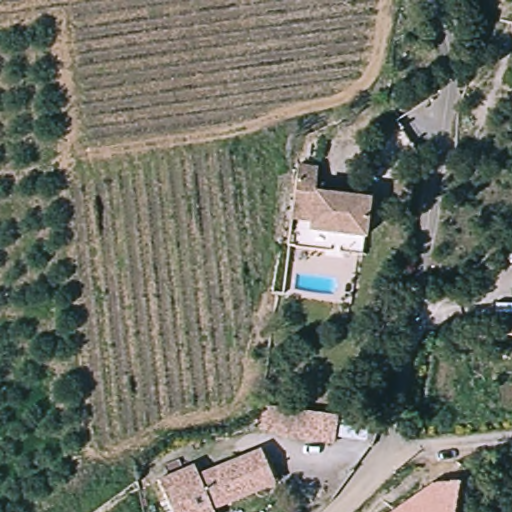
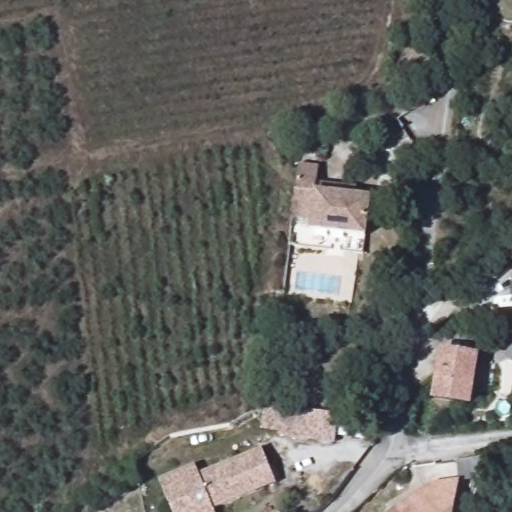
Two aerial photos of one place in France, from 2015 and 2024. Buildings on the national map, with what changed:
unchanged [(298,165),(318,167),(316,185),(354,189),(353,197),(360,198),(370,200),(367,220),(366,238),(311,231),(313,220),(292,217),(293,210),(298,165)]
unchanged [(509,325),(504,350),(491,346),(495,323),(509,325)]
new [(471,405),(430,399),(438,350),(479,355),(471,405)]
unchanged [(282,407),(339,413),(336,441),(278,434),(282,407)]
unchanged [(160,477),(196,462),(200,472),(263,446),(271,465),(278,482),(259,490),(215,508),(216,512),(175,512),(160,477)]
unchanged [(434,485),(460,486),(456,512),(396,512),(434,485)]

